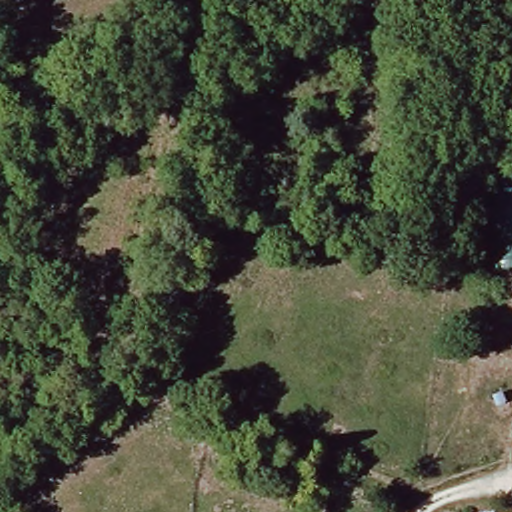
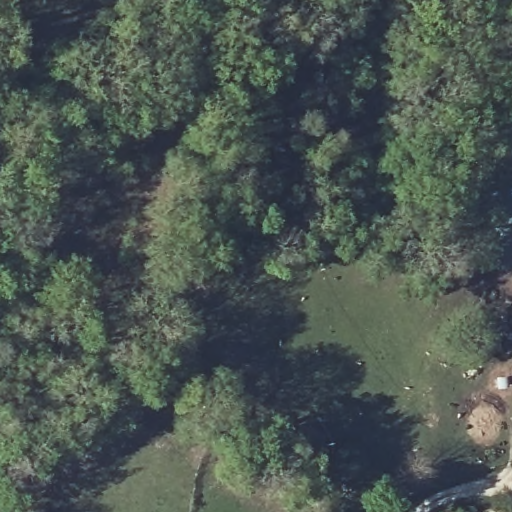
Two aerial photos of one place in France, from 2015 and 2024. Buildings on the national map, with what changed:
unchanged [(497,273),(486,168),(512,165),(512,273),(497,273)]

